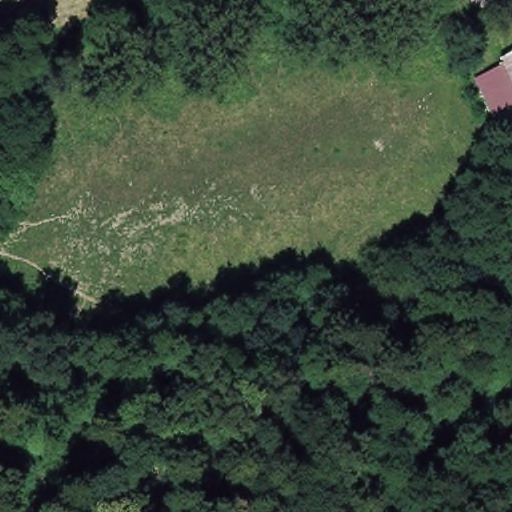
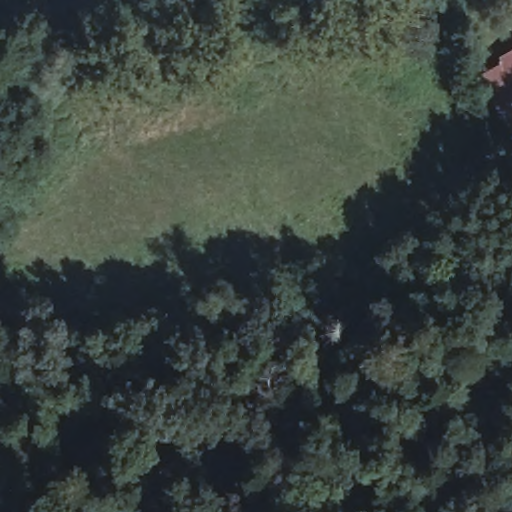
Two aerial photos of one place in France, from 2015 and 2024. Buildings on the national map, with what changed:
unchanged [(507,100),(491,68),(504,62),(501,55),(512,49),(512,97),(507,100)]

